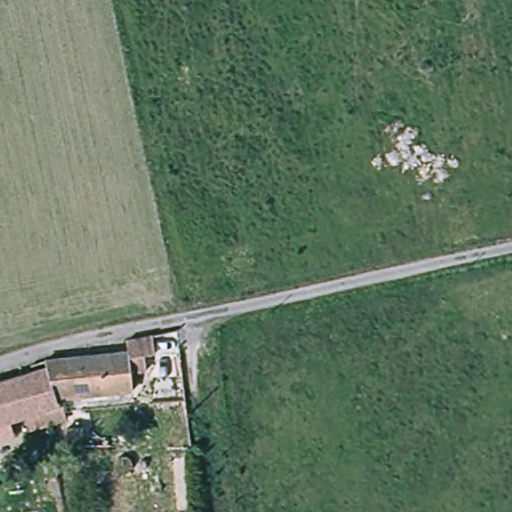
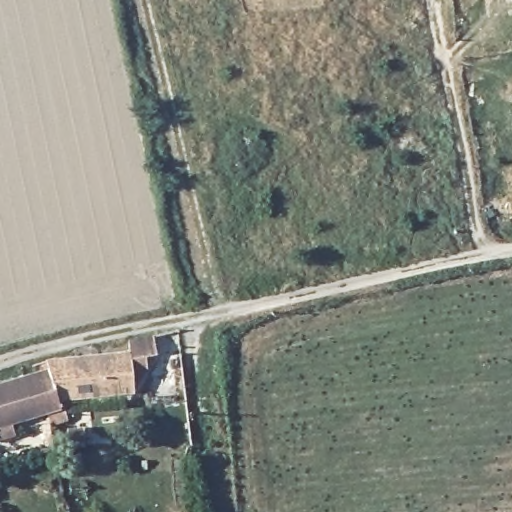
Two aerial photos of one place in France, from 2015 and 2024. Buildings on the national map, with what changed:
unchanged [(140,352),(138,340),(162,335),(165,355),(140,358),(143,390),(69,398),(68,398),(60,370),(58,361),(140,352)]
unchanged [(78,419),(62,423),(42,428),(37,415),(0,426),(0,387),(60,370),(68,398),(71,405),(75,404),(78,419)]

